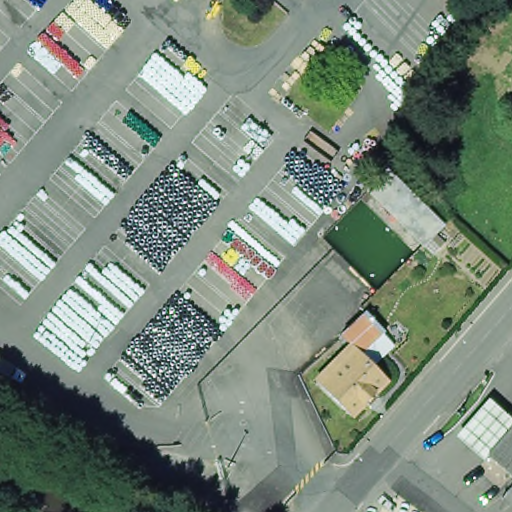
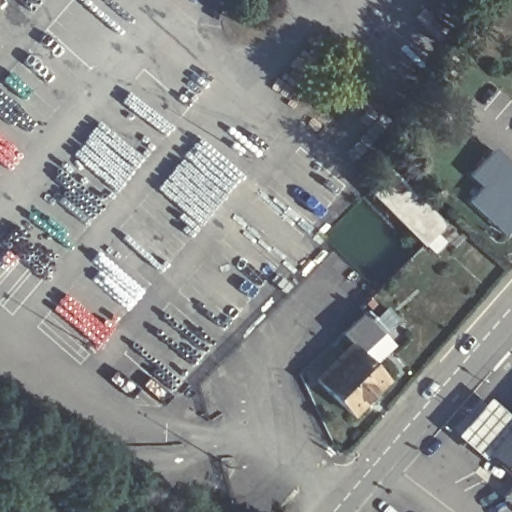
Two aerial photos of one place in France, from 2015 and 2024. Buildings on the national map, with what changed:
new [(512,161),(512,232),(509,236),(471,201),(484,186),(473,175),(498,147),(512,161)]
unchanged [(426,244),(371,190),(391,170),(447,224),(426,244)]
unchanged [(354,416),(319,381),(355,345),(346,335),(367,313),(390,335),(367,357),(390,379),(354,416)]
unchanged [(462,436),(489,409),(512,427),(487,456),(462,436)]
unchanged [(486,457),(487,456),(512,427),(512,426),(512,481),(486,457)]
unchanged [(501,497),(512,484),(512,507),(501,497)]

